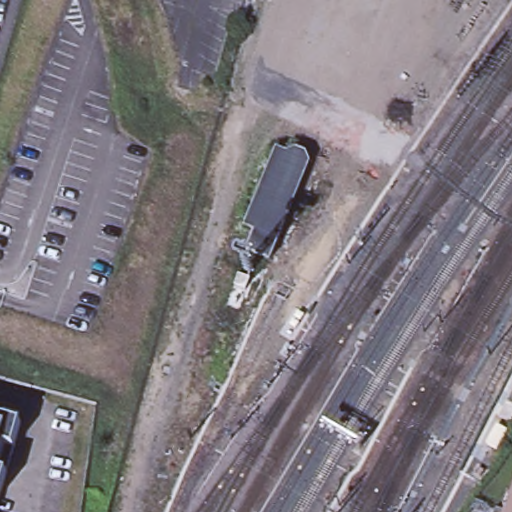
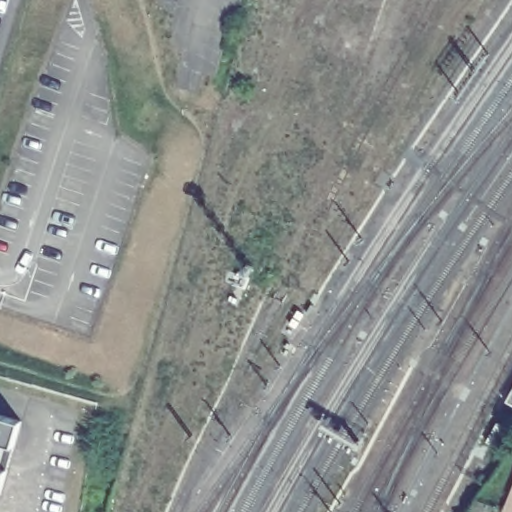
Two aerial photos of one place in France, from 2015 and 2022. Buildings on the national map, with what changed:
demolished [(290,154),(297,150),(304,151),(310,155),(314,163),(287,245),(279,243),(272,264),(250,254),(257,233),(249,229),(279,149),(290,154)]
demolished [(236,325),(227,349),(213,345),(222,320),(236,325)]
unchanged [(0,509),(0,415),(25,422),(0,509)]
unchanged [(507,511),(512,498),(512,512),(507,512),(507,511)]

